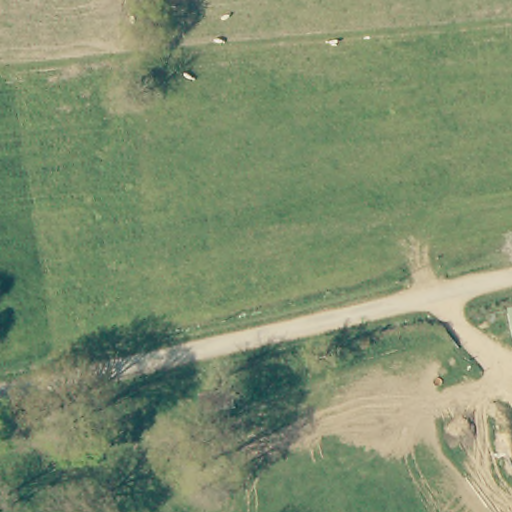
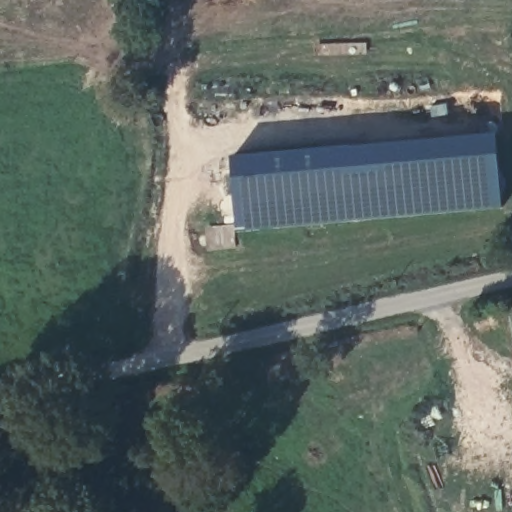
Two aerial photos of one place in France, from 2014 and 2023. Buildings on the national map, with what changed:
new [(495,133),(502,209),(237,235),(230,156),(495,133)]
unchanged [(512,306),(512,329),(508,307),(512,306)]

